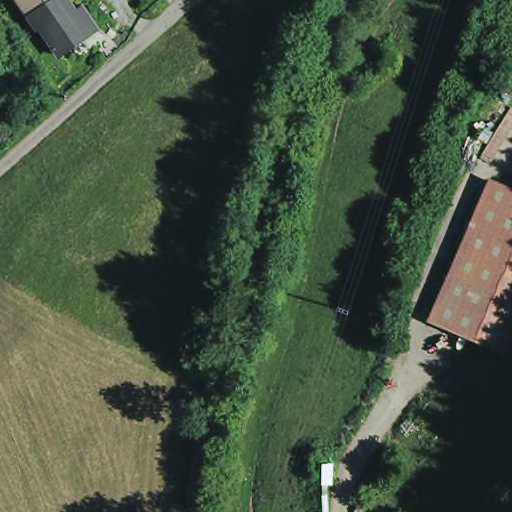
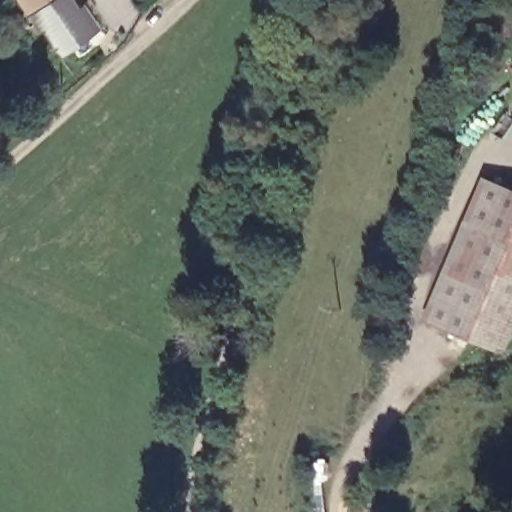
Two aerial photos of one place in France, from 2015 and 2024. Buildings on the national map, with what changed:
unchanged [(13,0),(53,0),(25,19),(13,0)]
unchanged [(73,62),(67,52),(53,61),(25,19),(53,0),(55,1),(65,17),(75,10),(82,21),(92,33),(102,41),(73,62)]
unchanged [(53,0),(57,0),(55,1),(53,0)]
unchanged [(512,186),(512,338),(507,351),(426,321),(486,175),(512,186)]

